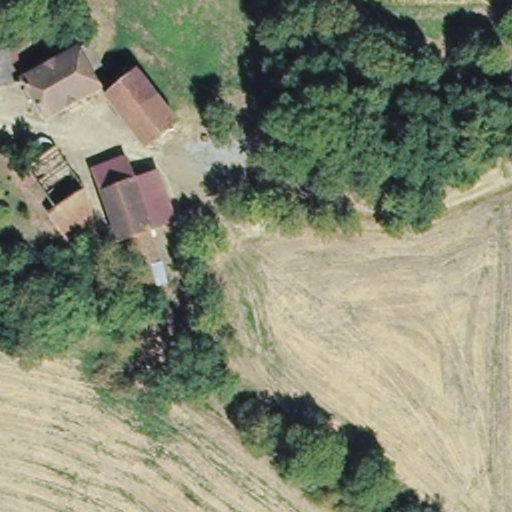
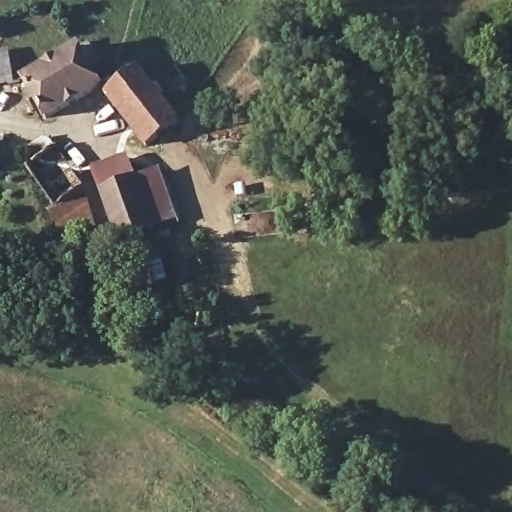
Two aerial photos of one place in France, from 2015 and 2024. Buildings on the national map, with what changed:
unchanged [(21,75),(79,47),(100,86),(44,115),(21,75)]
unchanged [(14,82),(0,84),(0,51),(9,50),(14,82)]
unchanged [(180,120),(144,146),(105,91),(140,69),(180,120)]
unchanged [(125,146),(146,200),(170,193),(176,213),(151,221),(169,283),(146,290),(124,235),(114,236),(91,163),(125,146)]
unchanged [(82,184),(103,235),(97,240),(69,256),(54,231),(57,228),(47,208),(82,184)]

